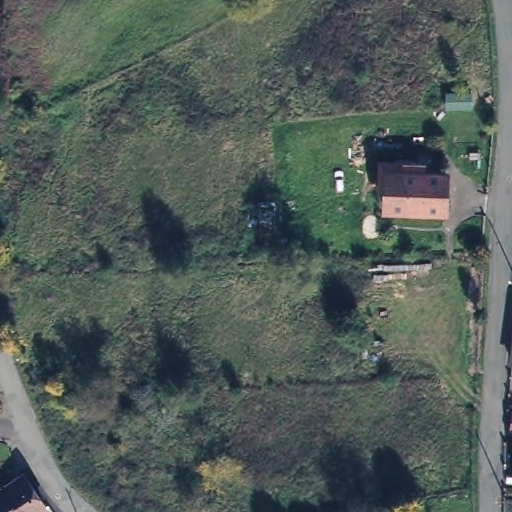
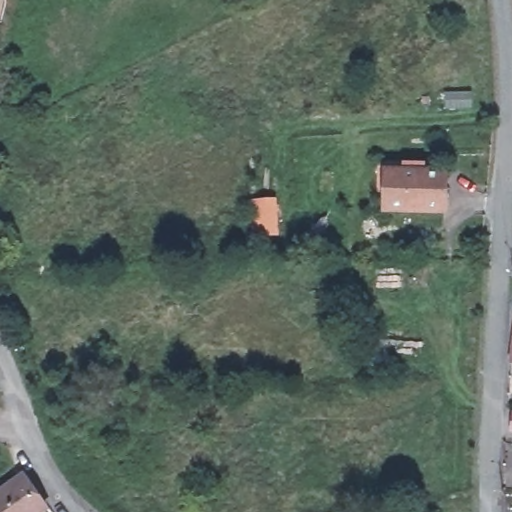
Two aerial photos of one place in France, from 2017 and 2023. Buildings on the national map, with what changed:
unchanged [(451,169),(451,208),(395,207),(395,169),(451,169)]
unchanged [(277,200),(279,232),(262,233),(262,200),(277,200)]
unchanged [(507,354),(512,319),(512,355),(507,354)]
unchanged [(39,500),(22,512),(0,512),(0,477),(16,466),(39,500)]

